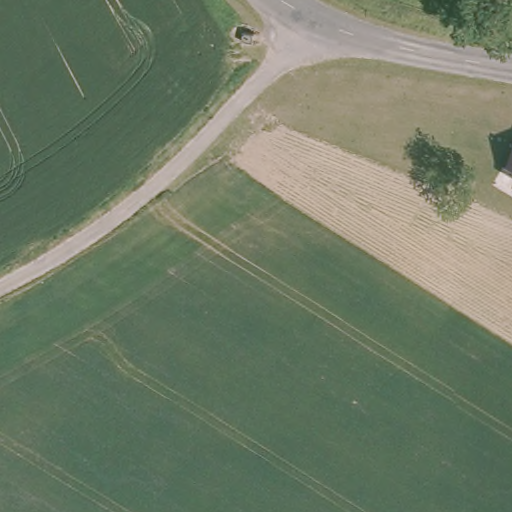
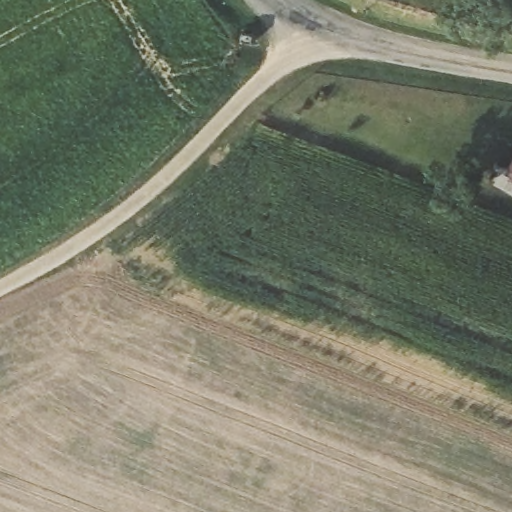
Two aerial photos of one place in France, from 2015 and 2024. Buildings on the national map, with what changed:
unchanged [(256,34),(256,43),(245,44),(244,35),(256,34)]
unchanged [(512,157),(512,171),(507,167),(512,157)]

